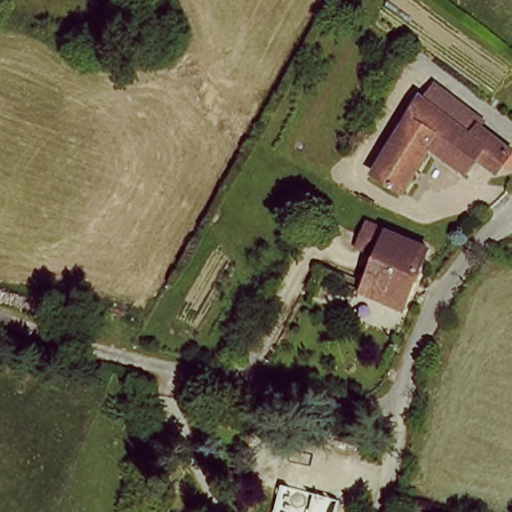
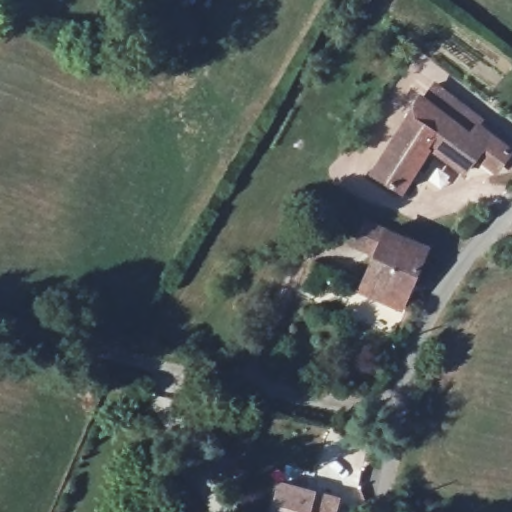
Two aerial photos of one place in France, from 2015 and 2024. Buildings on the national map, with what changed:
unchanged [(434,82),(483,121),(479,128),(512,156),(512,161),(501,171),(482,155),(462,176),(427,148),(397,182),(370,158),(434,82)]
unchanged [(425,246),(400,307),(361,291),(385,234),(425,246)]
new [(315,492),(340,497),(336,512),(270,512),(278,481),(315,492)]

